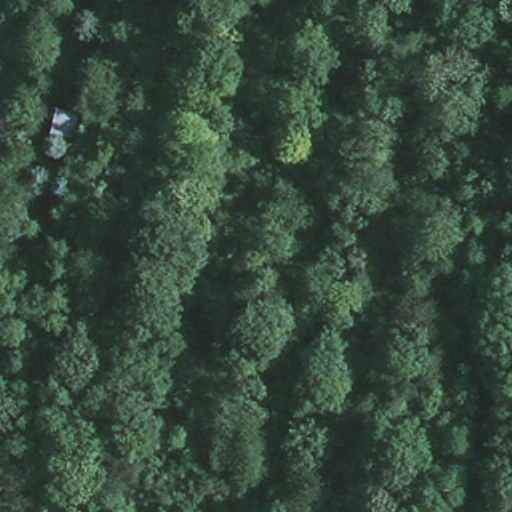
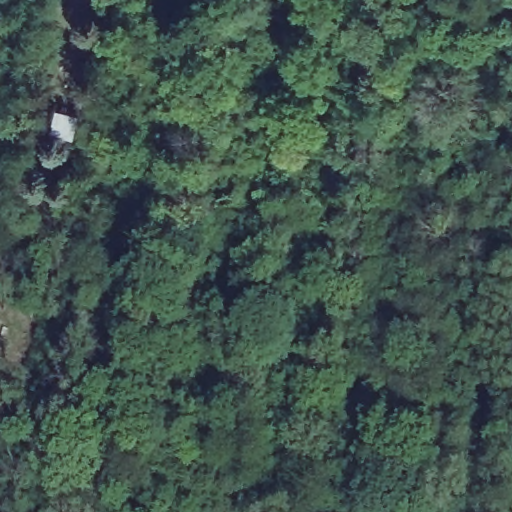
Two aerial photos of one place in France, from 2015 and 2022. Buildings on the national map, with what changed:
unchanged [(78,140),(48,135),(53,103),(83,113),(78,140)]

